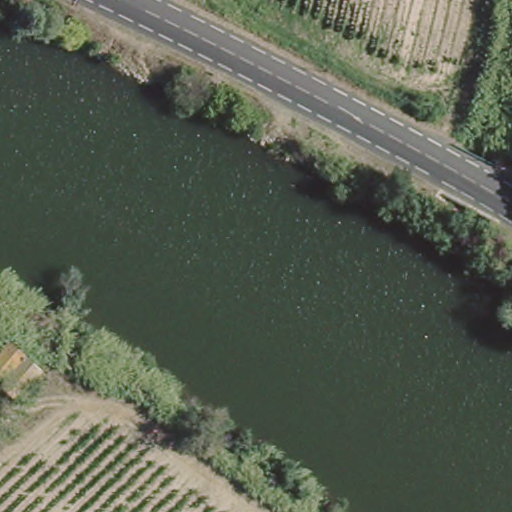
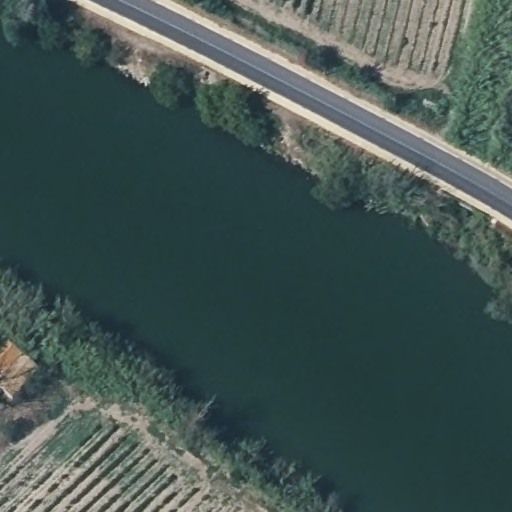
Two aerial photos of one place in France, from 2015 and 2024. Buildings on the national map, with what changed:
unchanged [(41,372),(32,382),(15,402),(0,389),(0,385),(3,382),(0,379),(0,353),(8,344),(25,357),(41,372)]

